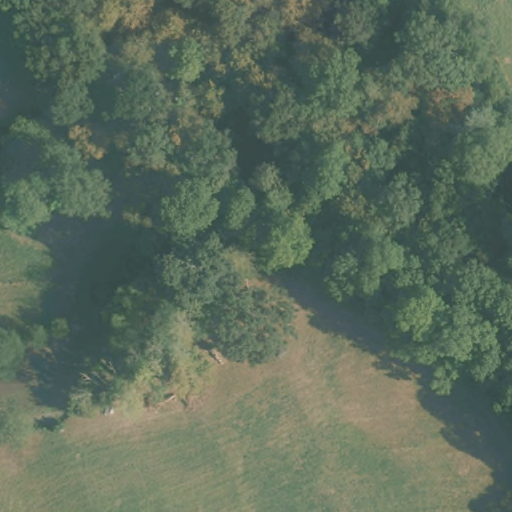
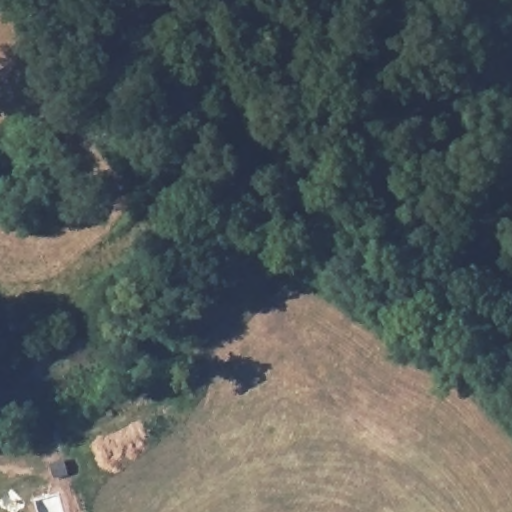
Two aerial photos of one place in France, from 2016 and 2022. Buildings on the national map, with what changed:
[]

